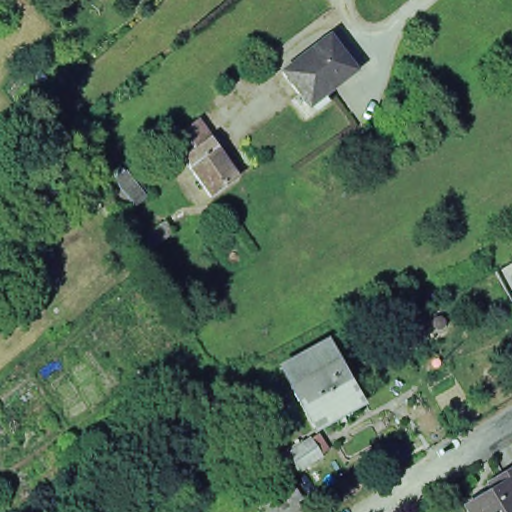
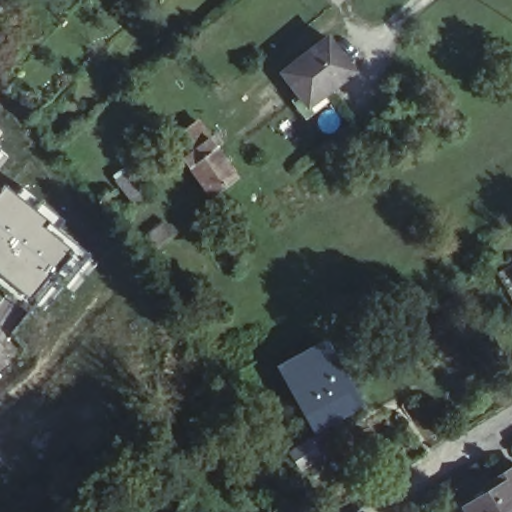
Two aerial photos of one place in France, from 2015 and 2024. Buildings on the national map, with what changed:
unchanged [(286,74),(332,39),(358,73),(311,107),(286,74)]
unchanged [(216,207),(187,168),(175,150),(201,130),(215,148),(243,187),(216,207)]
new [(9,160),(0,170),(0,151),(9,160)]
new [(4,188),(15,197),(21,188),(65,223),(59,230),(100,263),(73,296),(55,284),(27,314),(5,297),(0,303),(0,193),(4,188)]
unchanged [(377,310),(396,299),(408,322),(390,332),(377,310)]
unchanged [(345,360),(373,412),(315,442),(287,390),(345,360)]
unchanged [(319,458),(301,469),(290,451),(308,441),(319,458)]
unchanged [(482,495),(512,477),(512,512),(475,512),(488,504),(482,495)]
unchanged [(270,512),(267,507),(287,494),(299,512),(270,512)]

